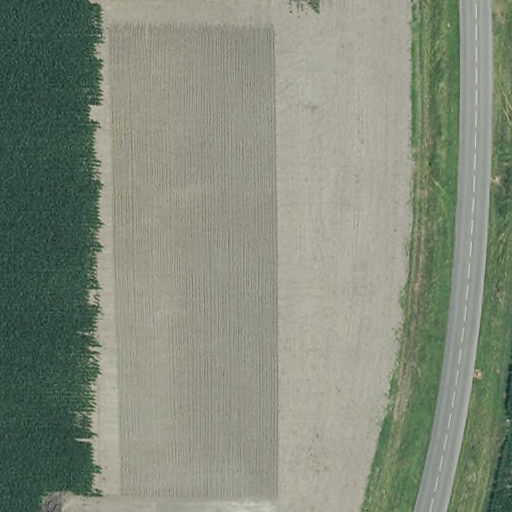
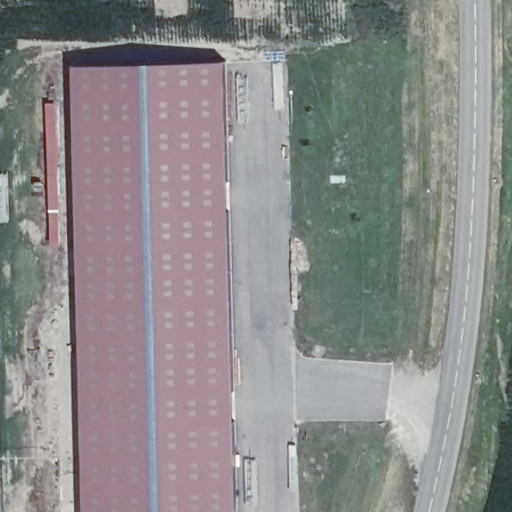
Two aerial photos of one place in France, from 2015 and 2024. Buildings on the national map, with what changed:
new [(228,60),(240,512),(88,512),(77,65),(228,60)]

